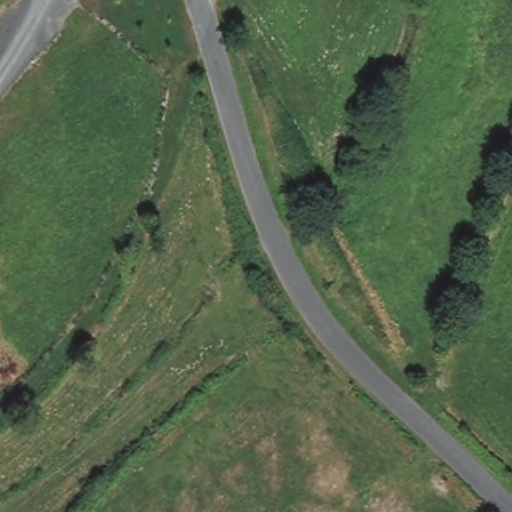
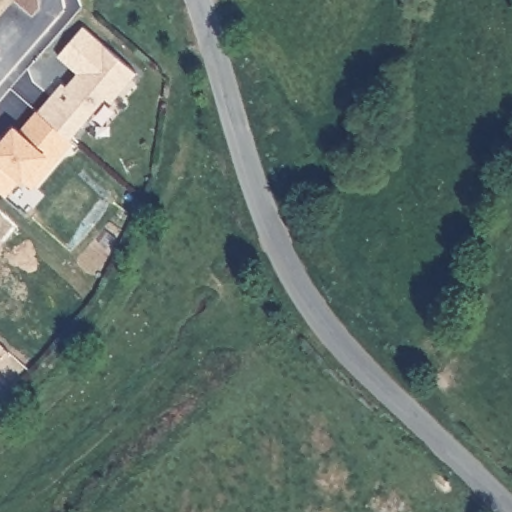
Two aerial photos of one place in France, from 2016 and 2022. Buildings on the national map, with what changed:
new [(109,102),(104,97),(69,137),(73,141),(32,189),(21,180),(7,196),(0,190),(0,141),(15,125),(20,129),(37,110),(38,110),(62,83),(66,85),(77,72),(58,56),(83,26),(136,72),(109,102)]

